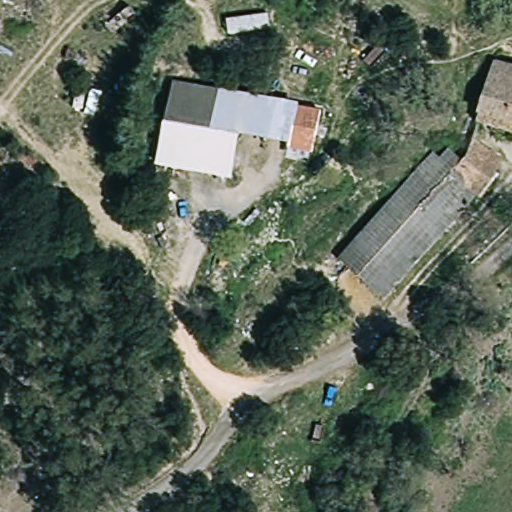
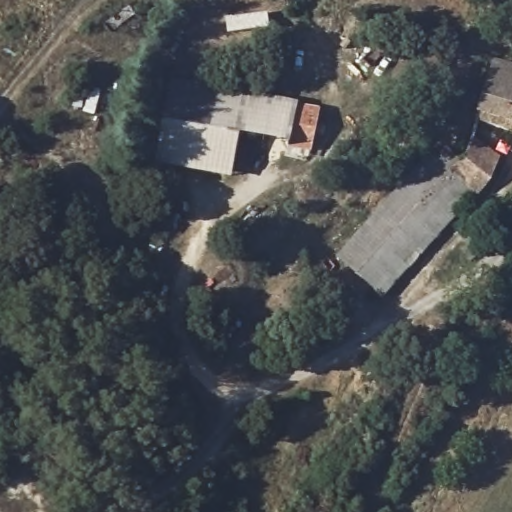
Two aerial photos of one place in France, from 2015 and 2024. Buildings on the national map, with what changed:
unchanged [(512,70),(512,136),(494,131),(470,124),(487,62),(512,70)]
unchanged [(233,137),(228,181),(151,167),(167,79),(316,106),(310,152),(233,137)]
unchanged [(465,164),(468,158),(474,142),(503,159),(498,177),(486,195),(476,189),(474,192),(379,297),(334,260),(440,141),(465,164)]

